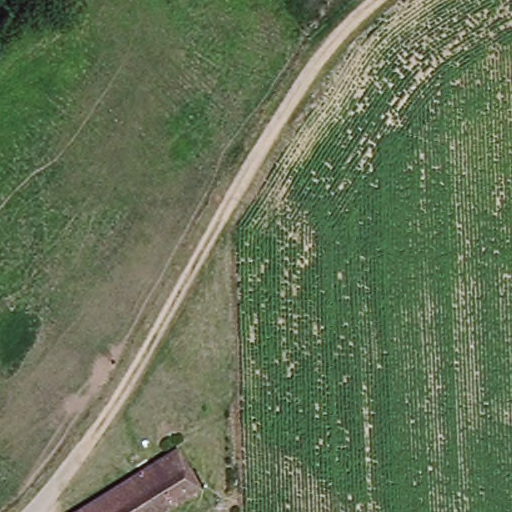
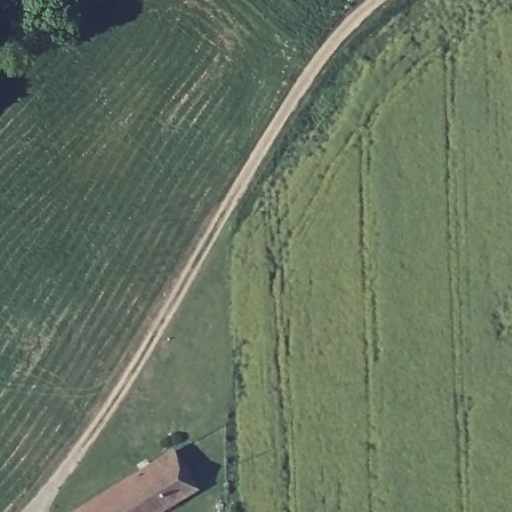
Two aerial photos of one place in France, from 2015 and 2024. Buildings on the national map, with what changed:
unchanged [(171,448),(200,493),(168,512),(72,512),(171,448)]

